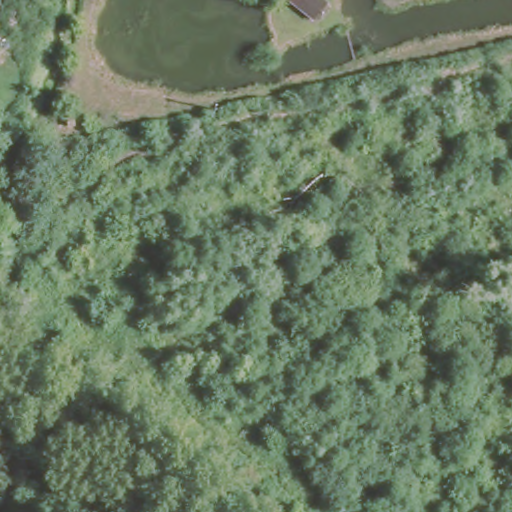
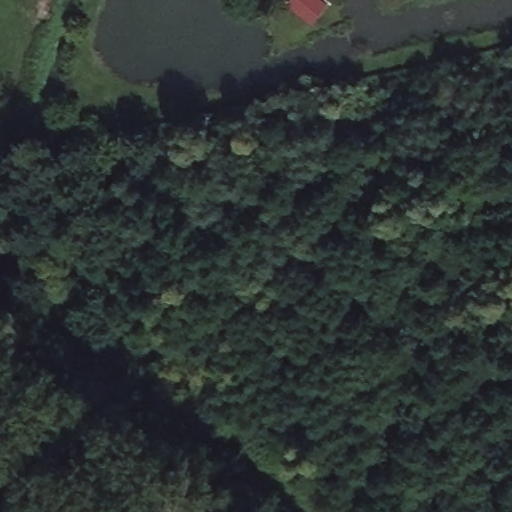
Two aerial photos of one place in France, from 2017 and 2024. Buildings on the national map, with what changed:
unchanged [(315,20),(292,0),(325,0),(330,4),(315,20)]

